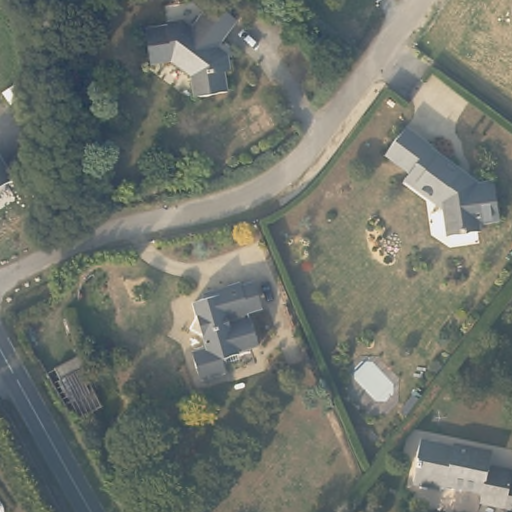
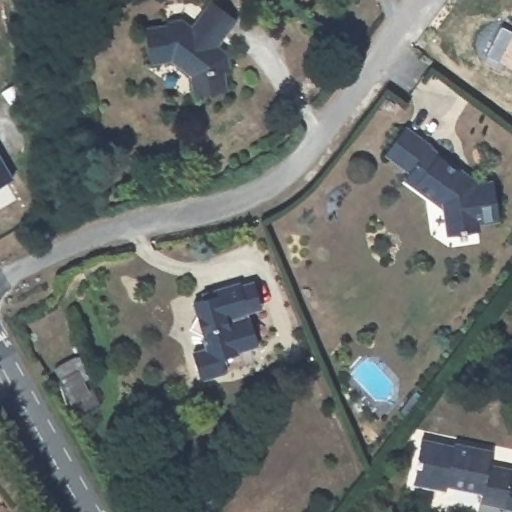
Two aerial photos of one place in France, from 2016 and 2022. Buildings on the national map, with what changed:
unchanged [(236,75),(228,76),(230,92),(194,98),(191,76),(168,59),(150,62),(145,29),(169,25),(169,22),(186,20),(197,29),(215,3),(241,22),(223,46),(235,55),(236,75)]
unchanged [(413,176),(389,156),(408,131),(430,147),(429,149),(451,166),(474,184),(475,185),(492,183),(498,219),(478,221),(480,230),(451,234),(448,209),(431,197),(410,181),(413,176)]
unchanged [(14,184),(0,192),(0,159),(14,184)]
unchanged [(234,346),(229,334),(217,340),(225,359),(197,371),(189,350),(205,344),(200,329),(189,325),(194,314),(190,301),(217,290),(216,286),(233,279),(233,282),(247,277),(255,299),(242,304),(255,337),(234,346)]
unchanged [(80,372),(74,376),(80,388),(65,396),(53,376),(68,367),(69,369),(76,365),(80,372)]
unchanged [(467,501),(469,487),(436,483),(435,489),(402,482),(409,441),(442,446),(442,442),(484,449),(481,466),(500,468),(500,467),(512,469),(512,488),(511,494),(509,508),(493,505),(467,501)]

